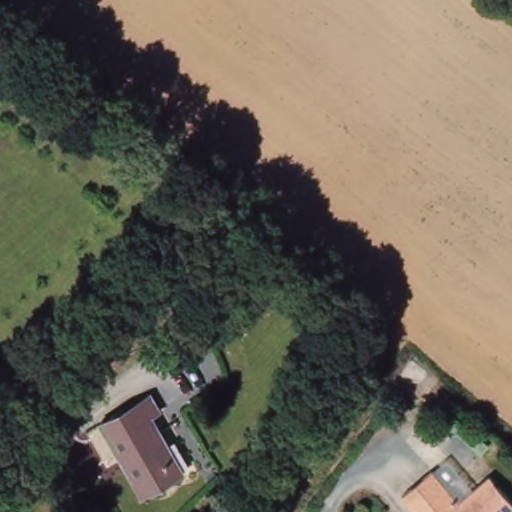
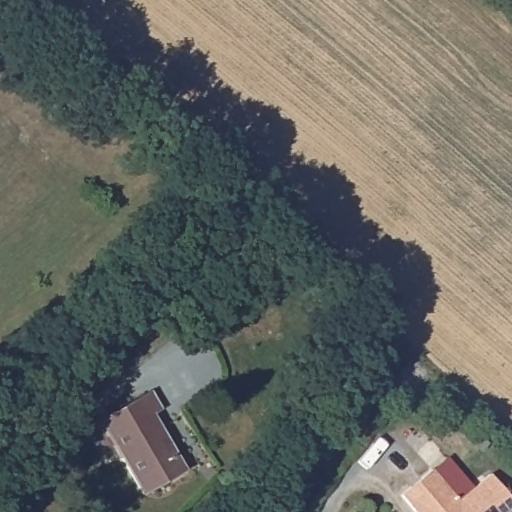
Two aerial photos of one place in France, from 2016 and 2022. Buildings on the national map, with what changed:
unchanged [(145,390),(157,406),(149,412),(184,469),(144,493),(96,420),(145,390)]
unchanged [(458,495),(490,470),(512,498),(512,506),(505,512),(419,512),(401,490),(431,465),(458,495)]

